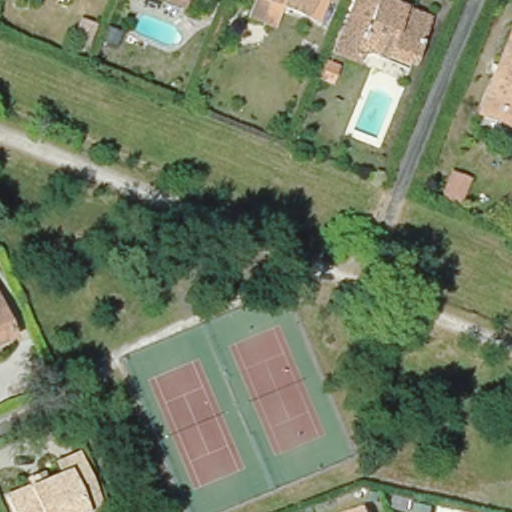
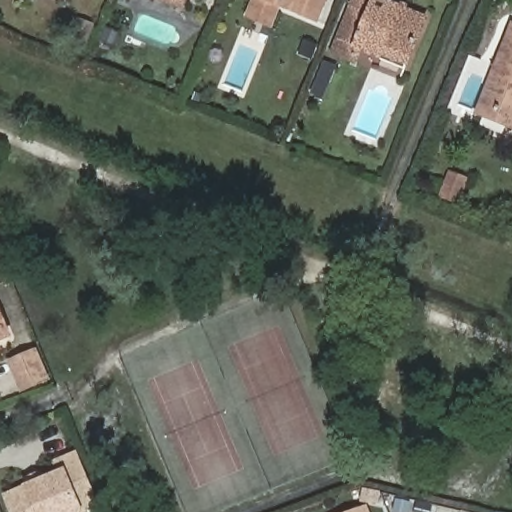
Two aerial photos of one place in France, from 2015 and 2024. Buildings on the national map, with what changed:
unchanged [(254,0),(324,0),(317,20),(300,13),(279,5),(271,25),(248,15),(254,0)]
unchanged [(383,49),(384,46),(361,38),(356,49),(338,42),(354,4),(355,0),(406,0),(429,9),(412,51),(409,59),(383,49)]
unchanged [(94,24),(85,50),(66,44),(75,16),(94,24)]
unchanged [(472,112),(476,103),(488,74),(507,26),(512,28),(512,124),(510,123),(508,128),(472,112)]
unchanged [(335,66),(331,85),(316,79),(321,59),(335,66)]
unchanged [(467,179),(458,205),(437,197),(447,170),(467,179)]
unchanged [(174,295),(192,288),(199,305),(182,313),(174,295)]
unchanged [(0,338),(0,326),(4,336),(0,338)]
new [(30,351),(42,379),(19,388),(8,360),(30,351)]
unchanged [(74,458),(95,510),(89,512),(11,512),(6,499),(28,490),(25,483),(36,478),(39,485),(59,478),(54,466),(74,458)]

